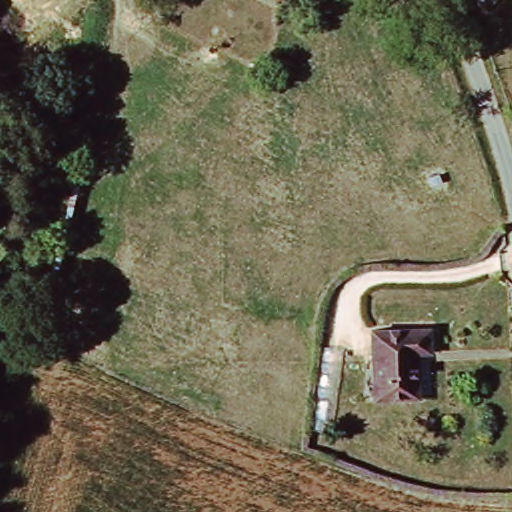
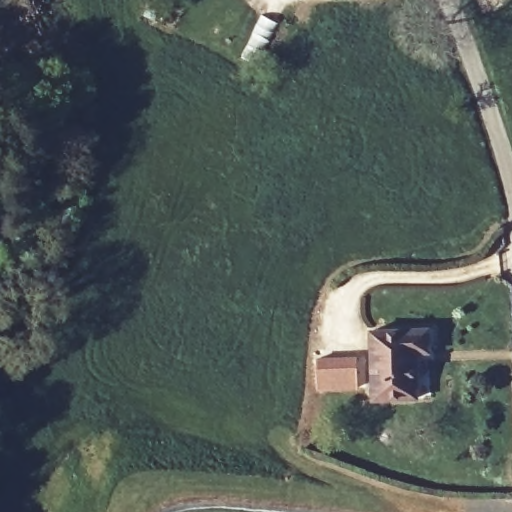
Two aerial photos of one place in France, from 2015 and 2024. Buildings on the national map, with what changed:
unchanged [(380,398),(377,329),(434,326),(435,351),(425,352),(427,396),(380,398)]
new [(358,355),(358,390),(316,391),(316,357),(358,355)]

